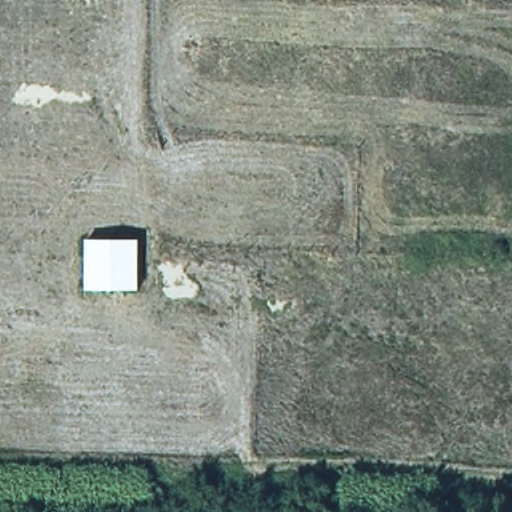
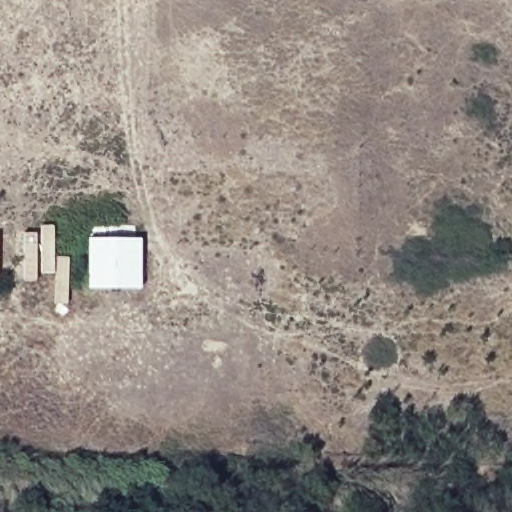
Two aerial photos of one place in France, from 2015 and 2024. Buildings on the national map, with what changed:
unchanged [(139,239),(140,288),(90,290),(89,240),(139,239)]

